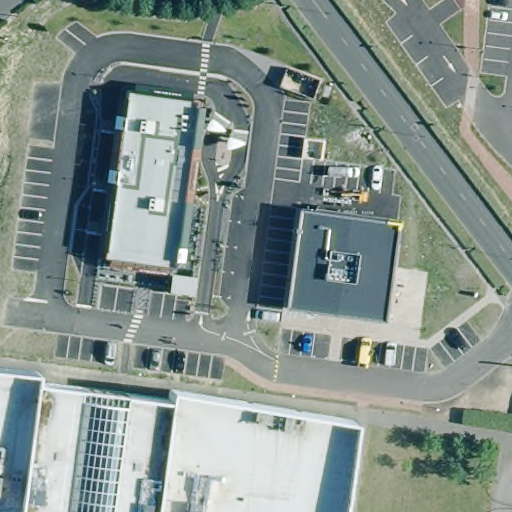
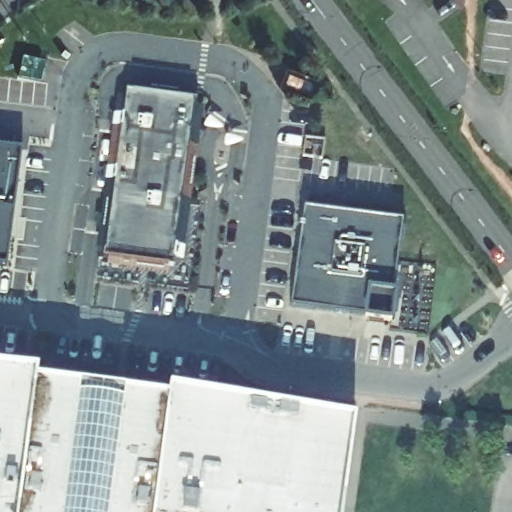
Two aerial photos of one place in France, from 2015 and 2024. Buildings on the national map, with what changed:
unchanged [(125,96),(126,91),(132,92),(132,81),(191,90),(191,98),(198,100),(197,107),(203,107),(185,262),(176,262),(166,275),(107,264),(109,258),(104,259),(105,249),(95,248),(114,93),(125,96)]
new [(21,151),(8,269),(0,269),(0,148),(21,151)]
unchanged [(404,221),(391,321),(290,307),(303,207),(404,221)]
unchanged [(37,372),(35,382),(167,400),(168,389),(354,421),(342,512),(0,512),(0,368),(37,372)]

